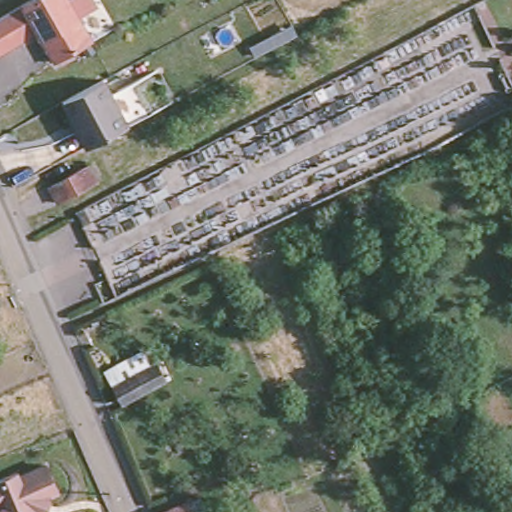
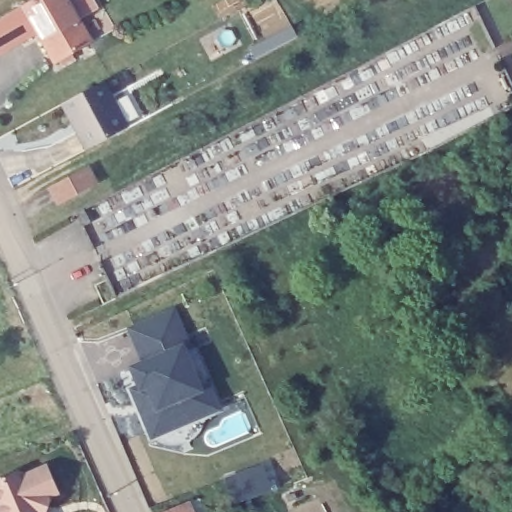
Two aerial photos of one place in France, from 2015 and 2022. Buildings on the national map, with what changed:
unchanged [(67,0),(92,43),(55,65),(37,34),(0,55),(0,20),(35,0),(67,0)]
unchanged [(62,105),(102,83),(127,129),(113,136),(86,150),(76,132),(67,115),(62,105)]
unchanged [(80,165),(88,181),(53,199),(45,182),(80,165)]
new [(171,311),(187,345),(181,348),(198,390),(194,392),(203,416),(151,436),(142,411),(151,406),(147,398),(142,400),(136,388),(140,386),(133,370),(146,363),(131,329),(171,311)]
demolished [(165,380),(121,407),(108,381),(148,357),(165,380)]
unchanged [(0,510),(0,477),(16,470),(18,475),(45,463),(55,490),(46,494),(48,497),(44,511),(41,512),(1,512),(0,510)]
new [(226,480),(263,467),(271,490),(234,502),(226,480)]
unchanged [(194,512),(149,512),(148,510),(185,495),(194,512)]

